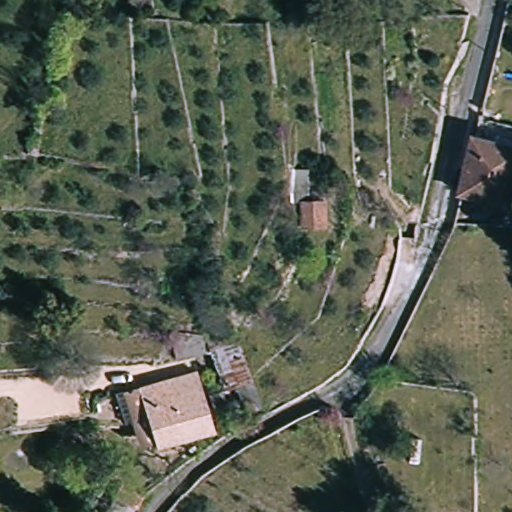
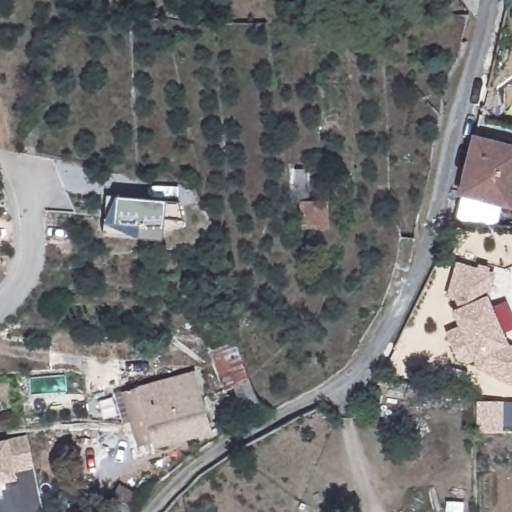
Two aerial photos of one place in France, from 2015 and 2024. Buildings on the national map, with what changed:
unchanged [(463,191),(475,139),(512,148),(512,207),(462,196),(463,191)]
new [(108,196),(118,197),(167,201),(180,202),(184,221),(166,219),(163,241),(139,238),(104,236),(108,196)]
unchanged [(327,202),(328,227),(305,227),(304,202),(327,202)]
new [(452,311),(459,308),(456,301),(446,298),(457,262),(478,267),(479,265),(491,268),(491,272),(496,273),(489,297),(510,345),(512,346),(512,387),(477,368),(475,362),(461,368),(445,333),(460,327),(452,311)]
unchanged [(258,407),(230,415),(229,397),(238,395),(229,363),(244,359),(258,407)]
unchanged [(132,451),(123,392),(196,372),(213,435),(132,451)]
new [(504,401),(504,433),(477,433),(477,402),(504,401)]
new [(28,436),(35,467),(15,471),(17,479),(0,483),(0,442),(28,436)]
unchanged [(118,486),(140,498),(132,512),(102,512),(118,486)]

